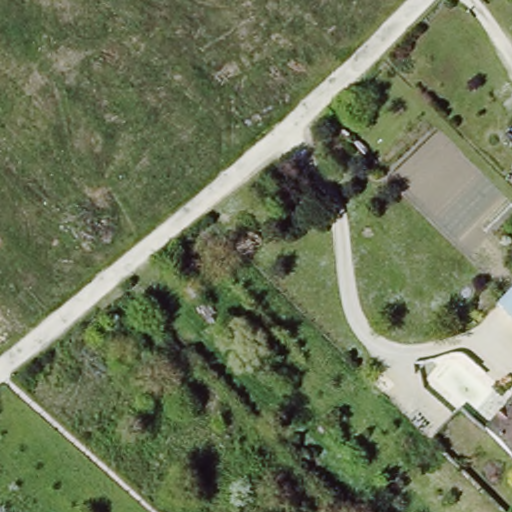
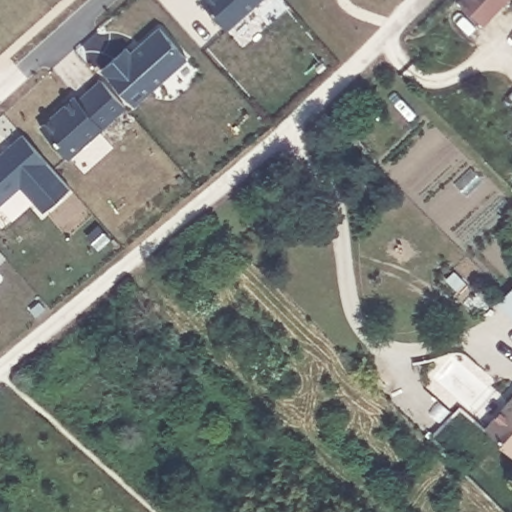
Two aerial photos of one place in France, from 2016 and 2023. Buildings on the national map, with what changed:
new [(227,30),(200,0),(261,0),(227,30)]
new [(483,25),(459,2),(461,0),(508,0),(483,25)]
new [(127,47),(132,51),(159,28),(186,60),(135,104),(102,70),(127,47)]
new [(74,94),(79,99),(100,79),(125,108),(103,128),(69,158),(41,126),(74,94)]
new [(22,136),(68,187),(42,212),(20,186),(0,204),(0,156),(22,136)]
unchanged [(512,292),(512,324),(497,307),(512,292)]
unchanged [(487,436),(507,413),(510,410),(512,407),(512,460),(485,438),(487,436)]

